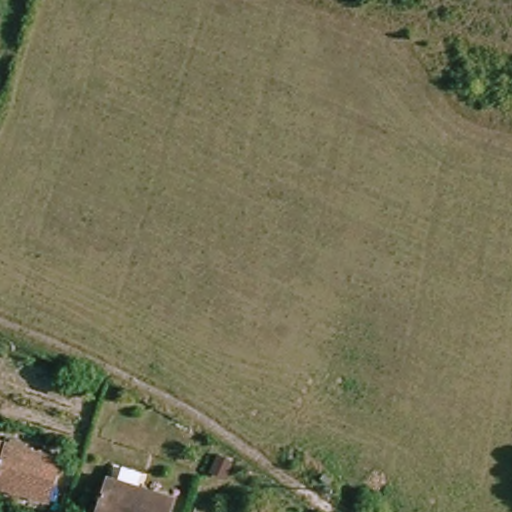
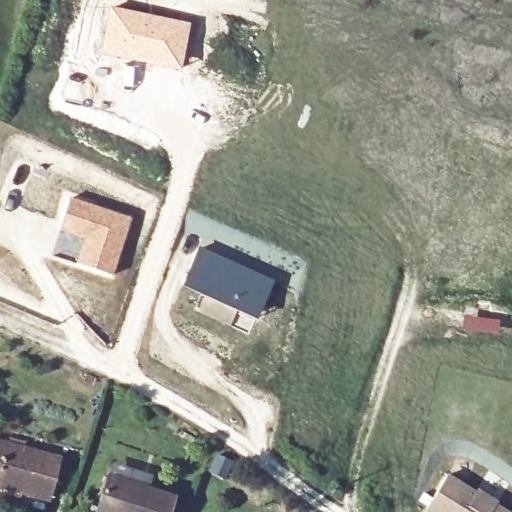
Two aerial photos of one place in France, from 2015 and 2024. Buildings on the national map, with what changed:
new [(107,5),(191,22),(180,70),(97,53),(107,5)]
new [(70,196),(133,217),(113,276),(74,262),(81,240),(58,231),(70,196)]
new [(186,280),(200,248),(246,268),(273,280),(271,286),(259,312),(257,317),(239,309),(231,325),(195,309),(202,293),(184,285),(186,280)]
unchanged [(48,500),(1,484),(3,480),(0,479),(0,438),(66,460),(55,495),(48,500)]
unchanged [(227,464),(224,478),(209,475),(213,460),(227,464)]
new [(449,476),(478,493),(479,491),(499,502),(498,506),(509,512),(428,512),(449,476)]
unchanged [(114,477),(174,497),(169,512),(101,512),(114,477)]

